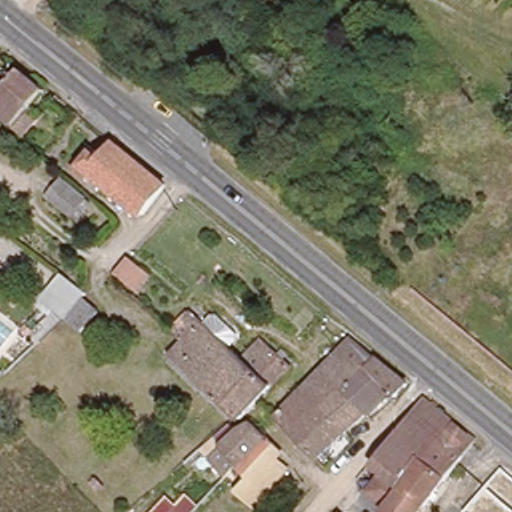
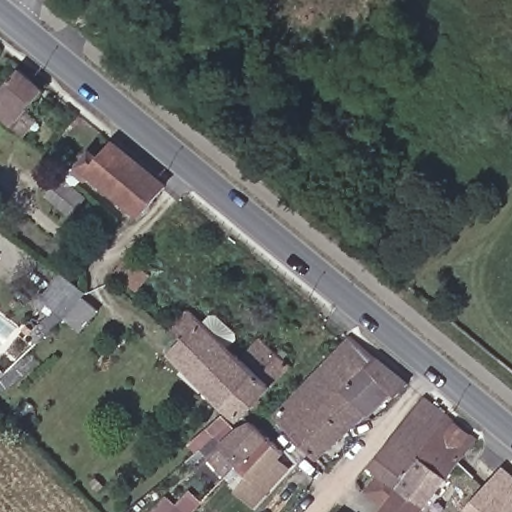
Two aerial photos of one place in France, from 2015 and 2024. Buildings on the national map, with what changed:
unchanged [(12,117),(0,107),(0,84),(17,64),(41,84),(25,102),(37,113),(24,128),(12,117)]
unchanged [(120,143),(170,183),(144,216),(86,169),(99,152),(107,159),(120,143)]
unchanged [(55,193),(65,181),(84,199),(74,210),(55,193)]
unchanged [(121,272),(133,257),(153,272),(140,288),(121,272)]
unchanged [(41,340),(33,333),(57,307),(50,301),(44,307),(35,300),(41,293),(44,296),(46,294),(65,272),(68,275),(89,291),(88,293),(86,294),(104,309),(86,330),(67,314),(66,315),(62,318),(41,340)]
unchanged [(264,347),(287,368),(289,370),(255,408),(203,362),(201,360),(188,374),(187,375),(172,363),(185,348),(174,340),(194,318),(207,331),(214,323),(222,323),(240,339),(241,346),(234,355),(246,365),(264,347)]
unchanged [(318,459),(298,438),(325,410),(300,386),(334,350),(347,337),(408,384),(396,396),(389,391),(367,412),(318,459)]
unchanged [(255,408),(241,423),(190,376),(203,362),(255,408)]
unchanged [(325,410),(298,438),(281,421),(273,413),(300,386),(325,410)]
unchanged [(383,512),(389,504),(374,493),(388,474),(373,464),(394,436),(415,409),(424,397),(451,418),(477,437),(426,508),(423,512),(383,512)]
unchanged [(250,483),(237,471),(240,468),(245,464),(230,450),(241,438),(248,430),(253,425),(262,426),(271,436),(289,453),(279,463),(286,471),(290,475),(284,481),(256,511),(239,495),(250,483)]
new [(512,472),(512,512),(464,512),(504,465),(512,472)]

